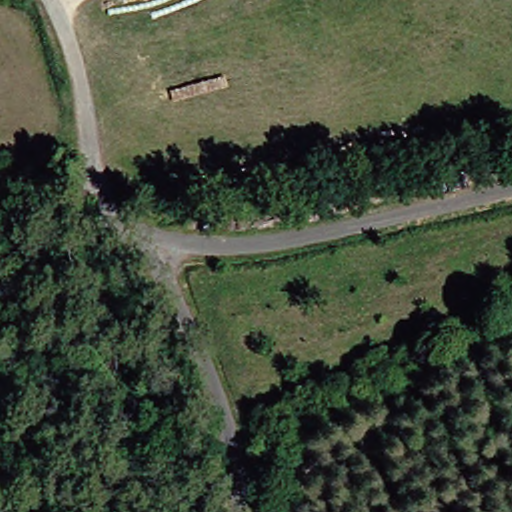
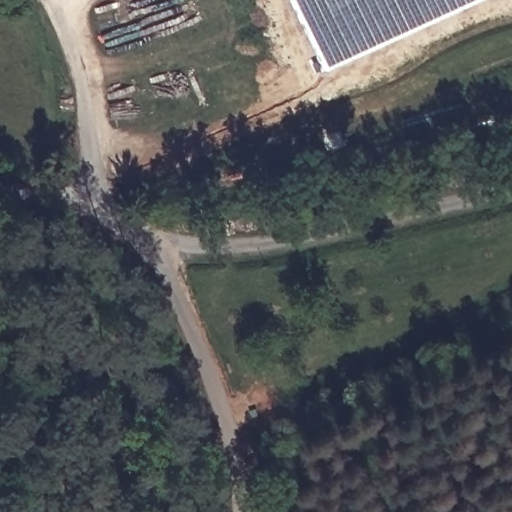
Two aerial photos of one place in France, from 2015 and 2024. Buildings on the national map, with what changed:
new [(297,0),(482,0),(329,68),(297,0)]

